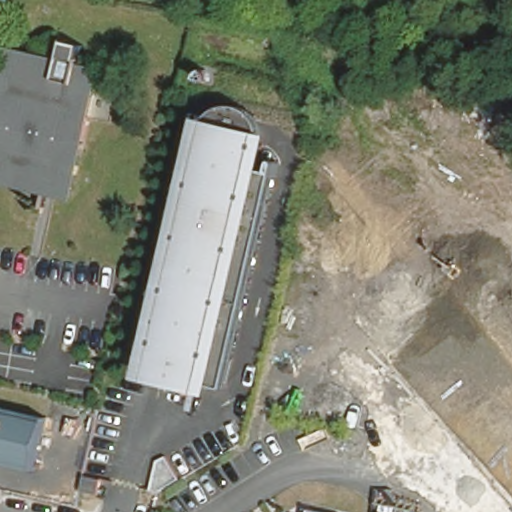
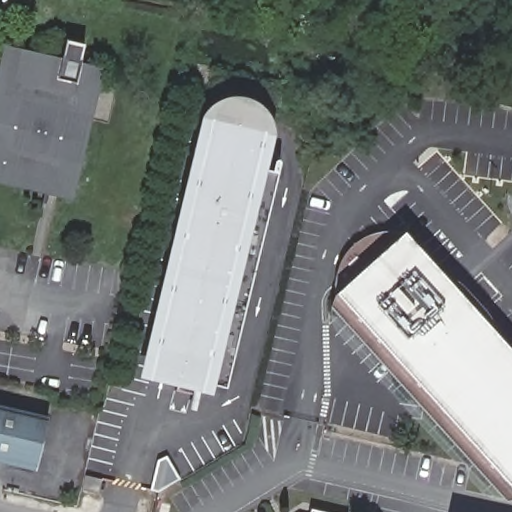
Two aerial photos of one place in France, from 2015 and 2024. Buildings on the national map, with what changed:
unchanged [(58,192),(52,191),(0,180),(0,85),(9,87),(12,69),(20,70),(21,64),(22,57),(58,64),(62,43),(82,47),(77,65),(82,67),(96,70),(79,142),(67,194),(58,192)]
unchanged [(182,393),(186,380),(168,375),(171,362),(142,355),(200,113),(202,109),(206,105),(209,102),(213,100),(218,97),(222,96),(227,96),(232,96),(234,97),(236,97),(240,98),(242,99),(246,102),(249,105),(252,108),(255,113),(257,117),(258,123),(258,127),(251,156),(271,161),(220,373),(197,368),(191,395),(182,393)]
new [(330,308),(335,292),(338,271),(343,254),(351,245),(361,237),(377,231),(385,231),(403,232),(512,353),(512,499),(504,500),(330,308)]
unchanged [(50,411),(38,465),(0,457),(0,400),(50,411)]
unchanged [(175,486),(160,494),(152,493),(157,477),(166,471),(175,486)]
unchanged [(104,481),(101,496),(84,491),(87,477),(104,481)]

